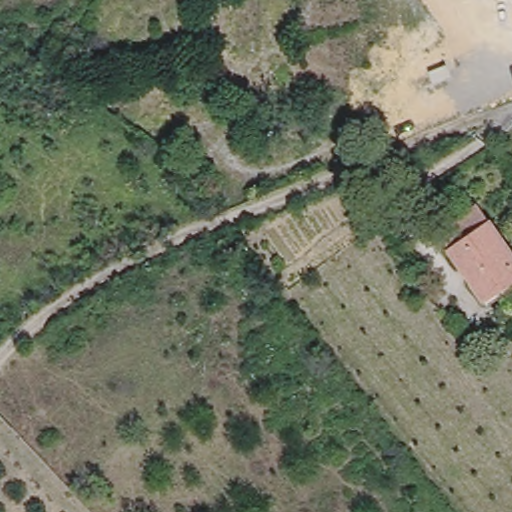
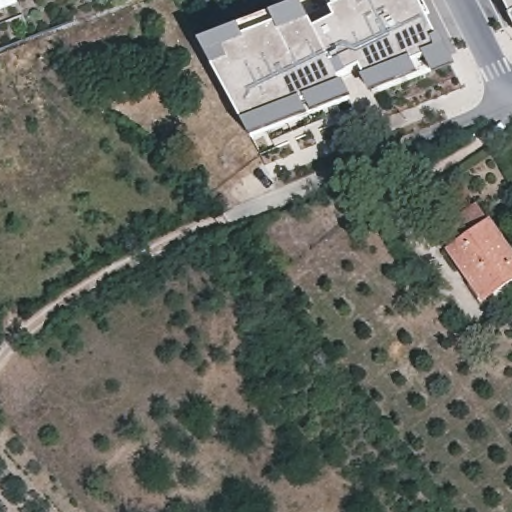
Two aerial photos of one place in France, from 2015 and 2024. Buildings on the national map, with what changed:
new [(0,8),(0,0),(17,0),(18,1),(0,8)]
new [(244,37),(278,25),(272,15),(304,4),(316,30),(340,20),(335,9),(329,0),(419,0),(437,38),(443,37),(457,68),(432,78),(425,59),(415,63),(419,75),(371,94),(363,68),(344,79),(355,99),(253,138),(201,43),(240,29),(244,37)]
new [(511,15),(503,0),(512,0),(512,17),(511,15)]
unchanged [(476,199),(512,250),(512,278),(486,297),(437,227),(476,199)]

